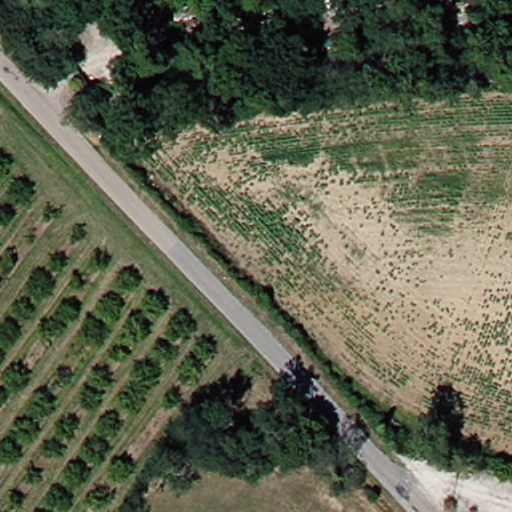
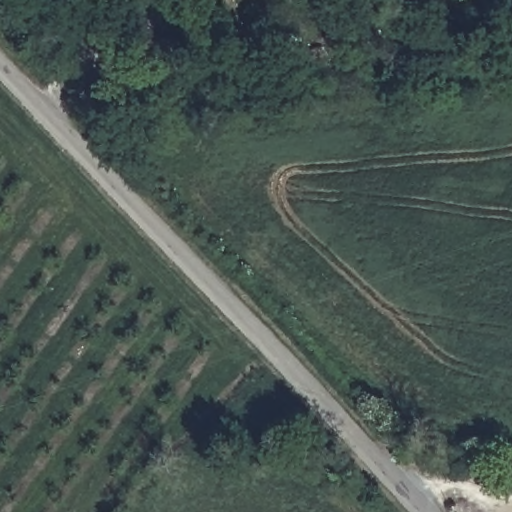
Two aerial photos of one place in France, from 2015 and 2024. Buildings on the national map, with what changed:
unchanged [(508,504),(512,499),(512,508),(508,504)]

